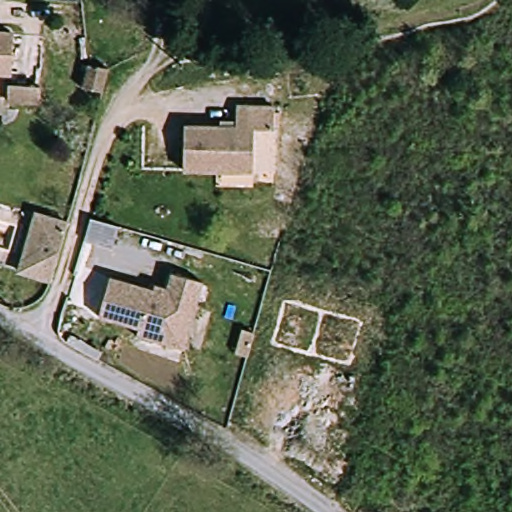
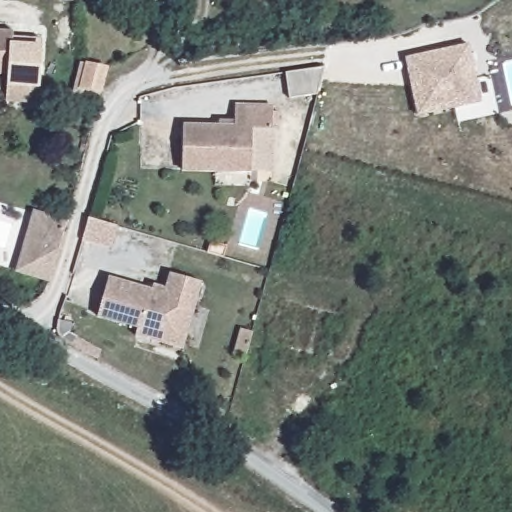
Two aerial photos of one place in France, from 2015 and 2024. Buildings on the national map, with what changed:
unchanged [(15,32),(12,71),(0,71),(0,32),(15,32)]
new [(406,57),(469,42),(481,101),(418,115),(406,57)]
unchanged [(98,61),(91,91),(67,84),(76,62),(98,61)]
unchanged [(26,79),(25,95),(0,94),(0,78),(26,79)]
unchanged [(236,123),(236,111),(236,103),(274,103),(274,125),(258,125),(254,125),(254,168),(184,167),(184,124),(236,123)]
unchanged [(52,280),(20,272),(35,215),(67,222),(52,280)]
new [(89,224),(117,231),(112,252),(83,245),(89,224)]
unchanged [(174,350),(137,338),(139,330),(99,318),(111,280),(167,296),(173,276),(204,285),(198,307),(183,352),(174,350)]

